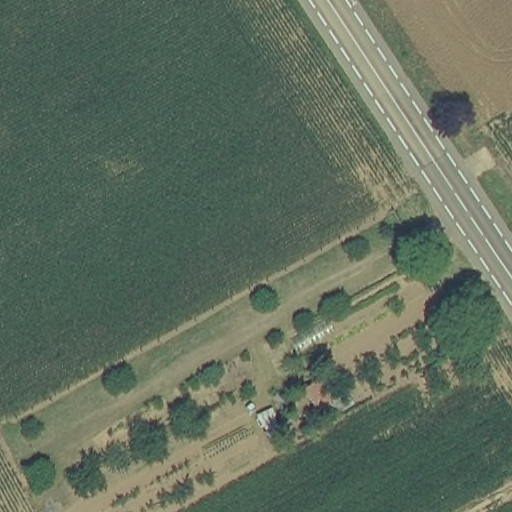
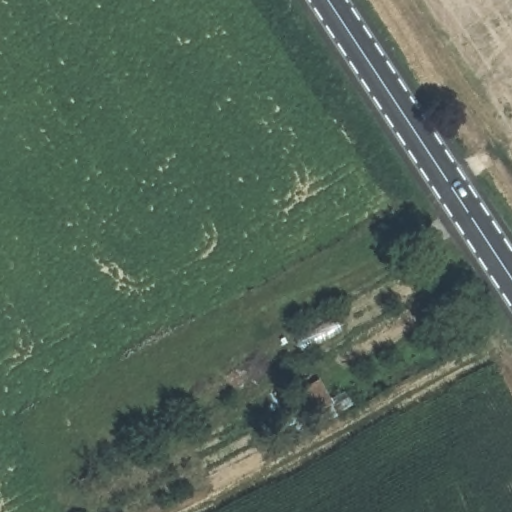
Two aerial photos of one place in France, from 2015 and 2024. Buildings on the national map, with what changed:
unchanged [(323,376),(334,407),(315,415),(302,387),(323,376)]

